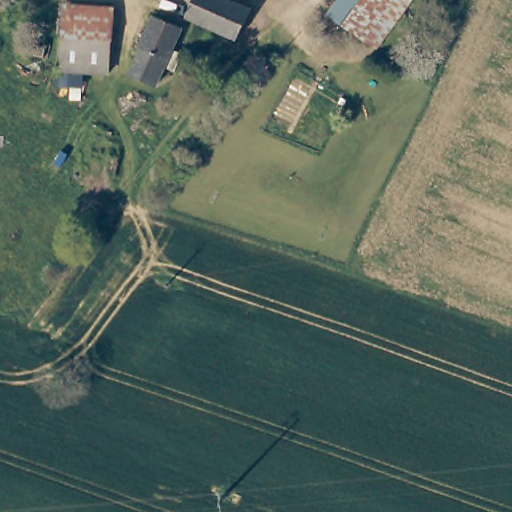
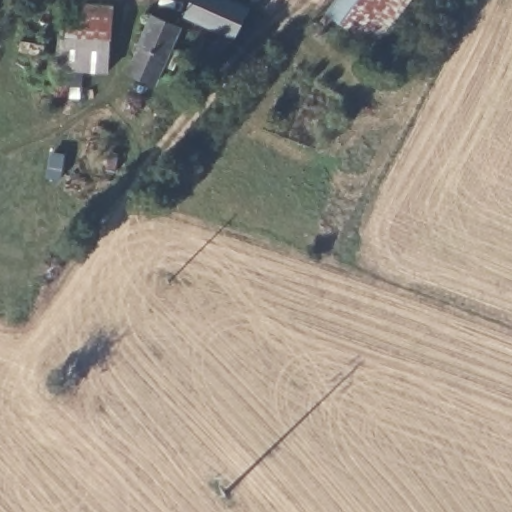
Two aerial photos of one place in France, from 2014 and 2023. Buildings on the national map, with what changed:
unchanged [(189,0),(230,0),(247,7),(235,38),(182,16),(189,0)]
unchanged [(377,34),(369,44),(327,8),(334,0),(404,0),(377,34)]
unchanged [(106,37),(73,38),(59,39),(58,20),(57,15),(57,9),(106,6),(107,23),(108,36),(106,37)]
unchanged [(181,30),(171,51),(180,56),(171,73),(161,68),(152,86),(127,72),(140,48),(138,47),(144,35),(154,16),(181,30)]
unchanged [(62,72),(60,56),(59,39),(73,38),(106,37),(108,36),(110,69),(99,70),(62,72)]

